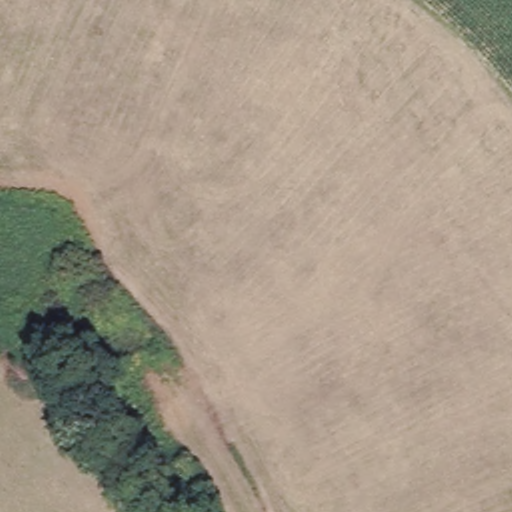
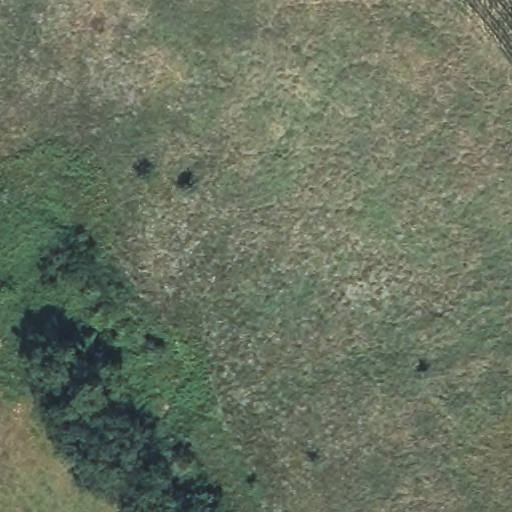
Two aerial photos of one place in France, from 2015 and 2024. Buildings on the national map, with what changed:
[]

